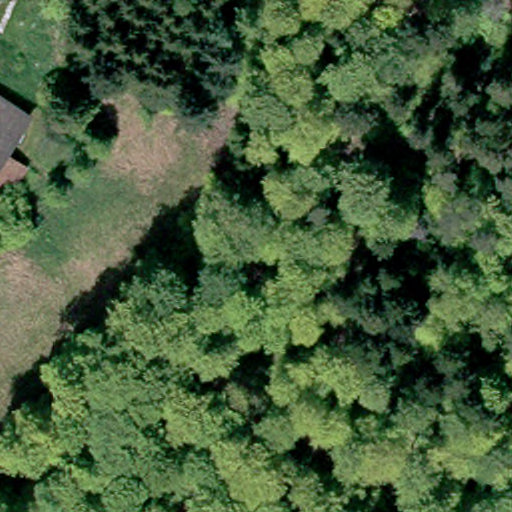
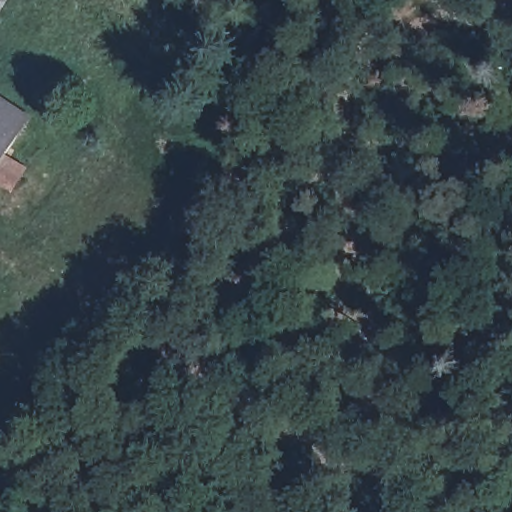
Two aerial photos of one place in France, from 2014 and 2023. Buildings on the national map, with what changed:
unchanged [(0,95),(26,112),(11,139),(4,152),(23,163),(12,182),(0,175),(0,95)]

